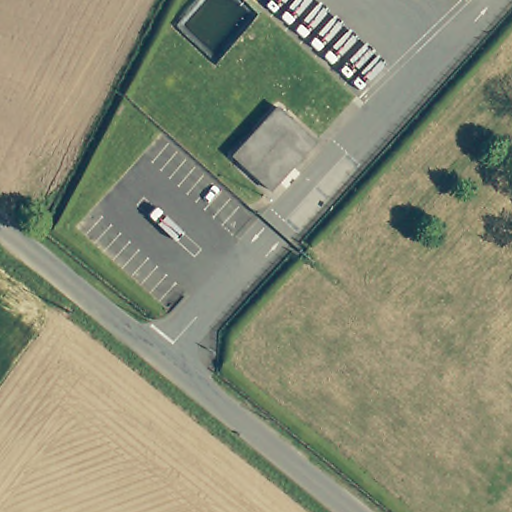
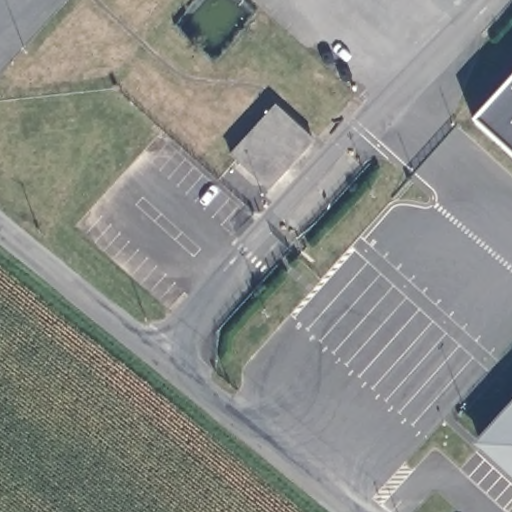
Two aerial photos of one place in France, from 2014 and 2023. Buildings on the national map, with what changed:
new [(512,80),(512,154),(475,120),(512,80)]
unchanged [(271,191),(232,158),(276,107),(316,140),(271,191)]
new [(512,404),(512,479),(476,445),(512,404)]

